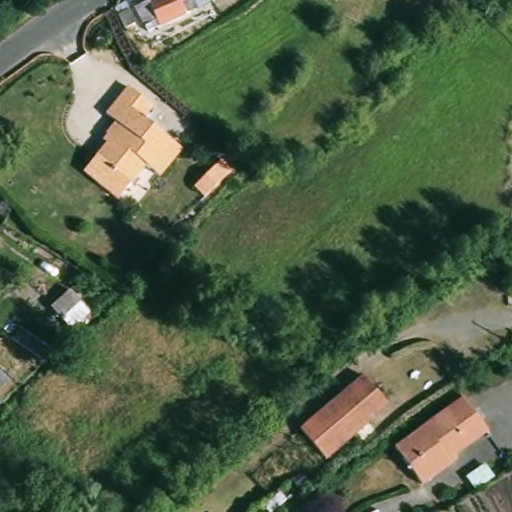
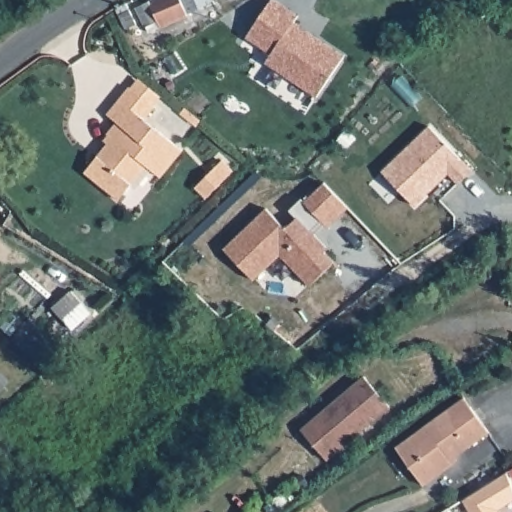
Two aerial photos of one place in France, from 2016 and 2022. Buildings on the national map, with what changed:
unchanged [(151,30),(150,31),(141,12),(154,4),(160,2),(164,0),(212,0),(201,7),(203,14),(165,32),(155,37),(151,30)]
new [(272,51),(247,36),(271,0),(279,0),(299,15),(295,22),(343,55),(317,94),(266,62),(272,51)]
unchanged [(429,2),(416,2),(416,0),(430,0),(429,2)]
unchanged [(131,7),(140,27),(129,32),(120,12),(131,7)]
unchanged [(100,161),(115,143),(111,139),(120,127),(111,119),(132,94),(156,115),(148,125),(185,157),(160,184),(147,173),(120,205),(99,187),(86,177),(100,161)]
new [(381,172),(429,126),(472,170),(457,184),(447,174),(415,207),(381,172)]
unchanged [(204,200),(193,190),(213,167),(224,177),(204,200)]
new [(265,209),(285,229),(296,218),(289,211),(301,199),(304,202),(323,183),(348,208),(327,227),(322,222),(311,232),(327,249),(323,253),(333,263),(309,287),(280,256),(253,281),(223,250),(265,209)]
unchanged [(69,288),(90,309),(72,326),(52,306),(69,288)]
unchanged [(0,381),(7,389),(0,396),(0,381)]
unchanged [(368,382),(394,412),(334,465),(308,437),(368,382)]
unchanged [(465,401),(489,436),(448,462),(452,466),(422,486),(395,447),(465,401)]

